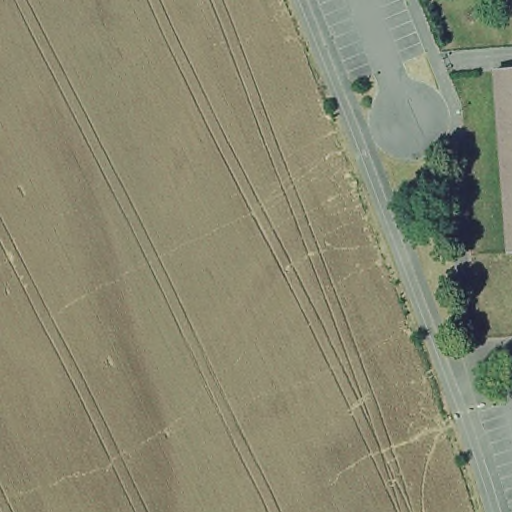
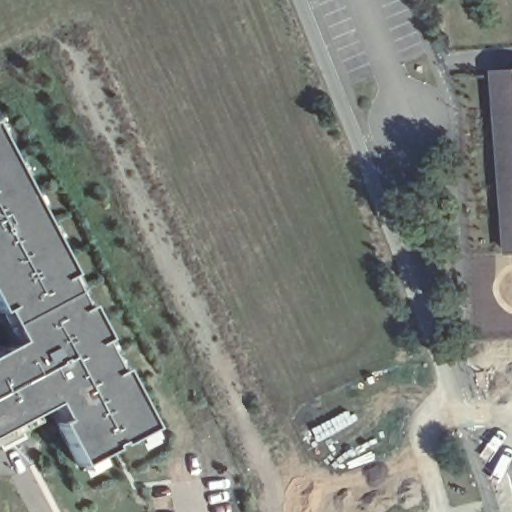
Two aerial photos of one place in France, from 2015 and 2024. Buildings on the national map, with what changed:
unchanged [(512,251),(502,251),(489,68),(512,67),(512,251)]
new [(126,440),(125,437),(117,441),(118,445),(83,462),(62,420),(70,416),(60,398),(21,419),(30,435),(7,447),(0,434),(0,351),(25,337),(10,306),(4,308),(0,301),(0,124),(77,270),(72,272),(88,304),(93,302),(110,335),(107,338),(124,368),(128,365),(157,423),(126,440)]

